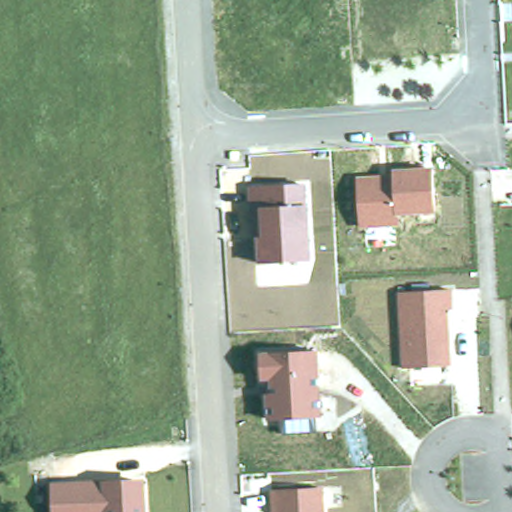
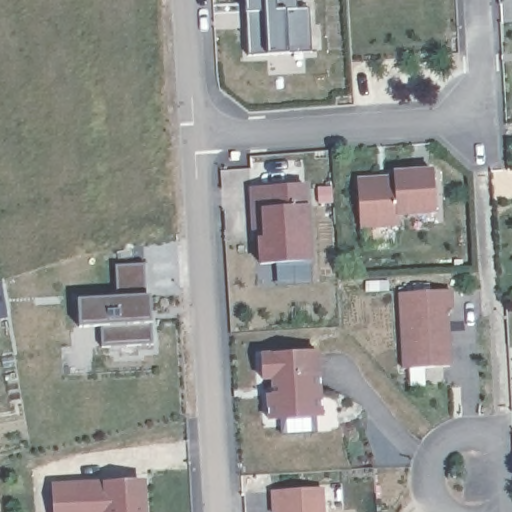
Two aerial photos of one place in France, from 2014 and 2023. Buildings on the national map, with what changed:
new [(296,7),(309,7),(311,50),(248,54),(246,0),(295,0),(296,7)]
unchanged [(437,213),(398,215),(397,225),(361,225),(357,177),(394,178),(392,168),(434,169),(437,213)]
unchanged [(310,262),(259,264),(253,238),(249,185),(308,185),(310,262)]
new [(144,264),(146,295),(150,294),(151,321),(152,342),(101,345),(101,323),(80,325),(78,299),(116,295),(115,265),(144,264)]
new [(2,281),(7,316),(0,317),(0,281),(2,281)]
unchanged [(450,288),(454,363),(402,366),(398,293),(450,288)]
unchanged [(323,417),(318,418),(319,430),(285,433),(285,418),(267,419),(264,396),(277,395),(277,388),(271,388),(270,381),(262,381),(260,355),(320,351),(323,417)]
unchanged [(150,512),(52,512),(51,481),(149,477),(150,512)]
unchanged [(275,512),(274,490),(325,487),(327,512),(275,512)]

